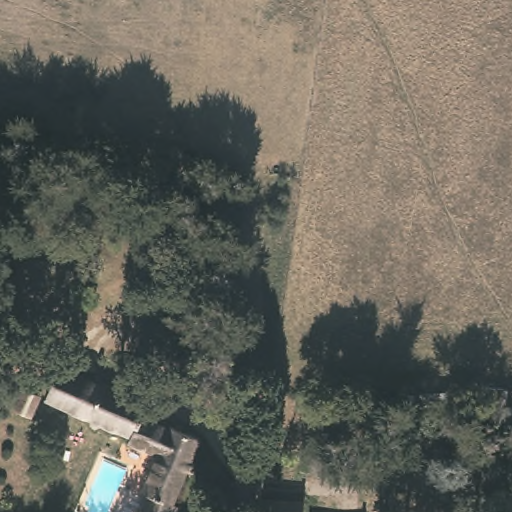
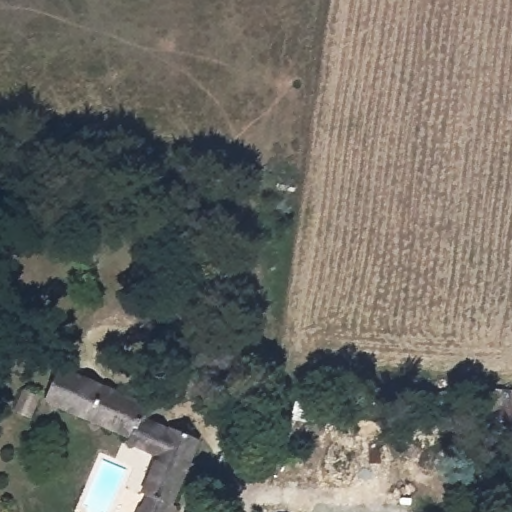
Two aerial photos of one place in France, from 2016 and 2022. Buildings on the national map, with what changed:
unchanged [(135,436),(137,429),(50,391),(64,361),(152,400),(147,411),(179,426),(181,423),(207,435),(198,463),(135,436)]
unchanged [(47,389),(36,413),(20,408),(32,383),(47,389)]
unchanged [(177,503),(182,506),(180,512),(139,512),(142,505),(149,506),(155,492),(146,488),(163,453),(198,463),(177,503)]

